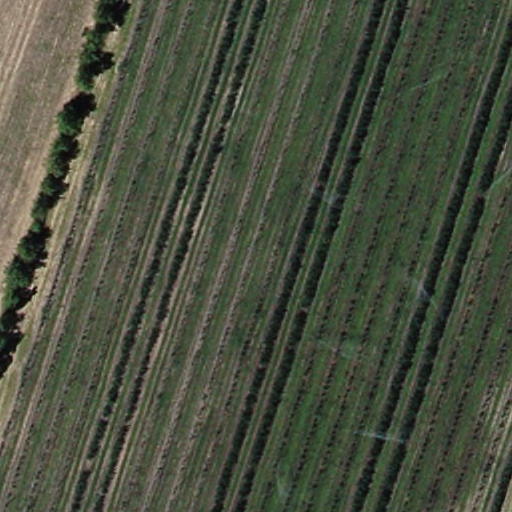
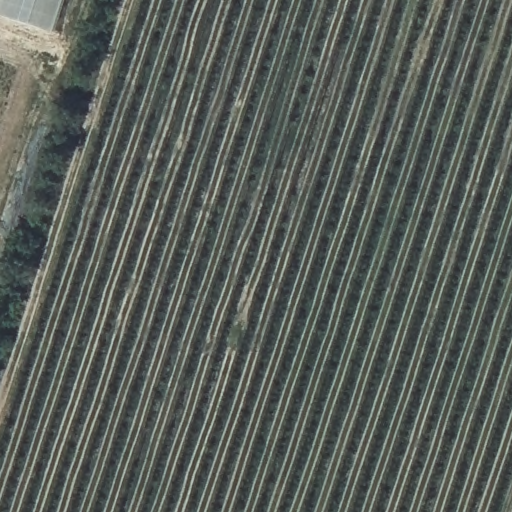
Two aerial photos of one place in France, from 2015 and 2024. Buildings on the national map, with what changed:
new [(0,13),(0,0),(67,0),(56,31),(0,13)]

